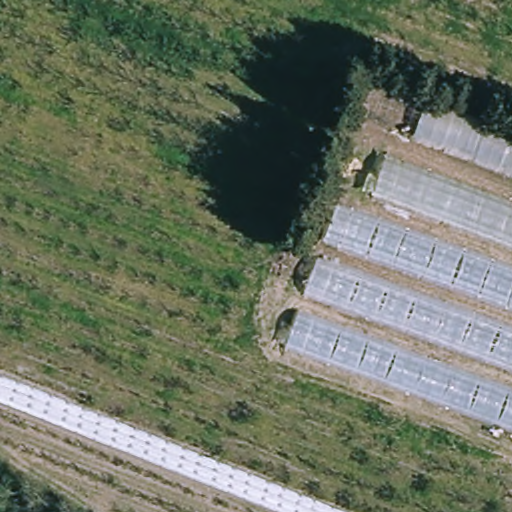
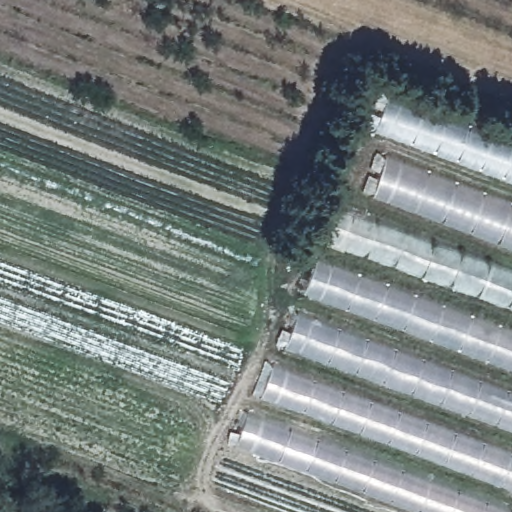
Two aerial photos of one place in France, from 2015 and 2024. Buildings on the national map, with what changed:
unchanged [(328,225),(337,202),(353,207),(358,196),(397,92),(512,134),(512,434),(280,350),(328,225)]
new [(512,492),(260,399),(272,364),(512,451),(512,492)]
new [(509,512),(408,512),(234,448),(248,411),(511,507),(509,512)]

